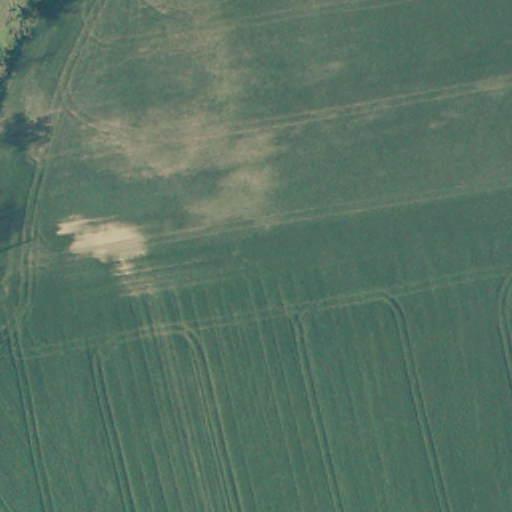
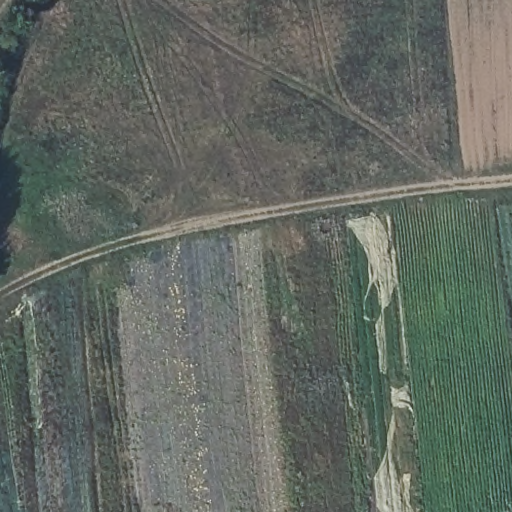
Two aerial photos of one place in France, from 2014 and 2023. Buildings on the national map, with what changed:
[]

